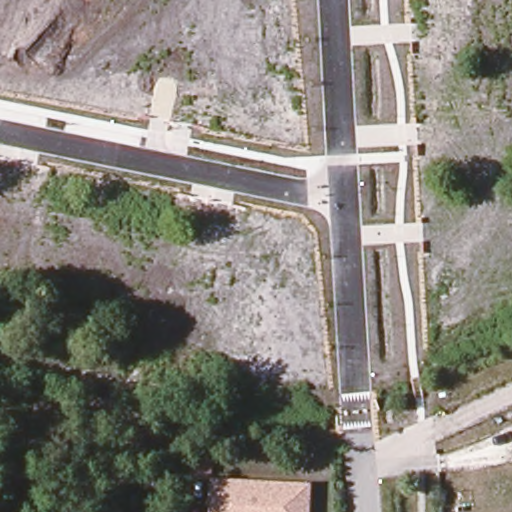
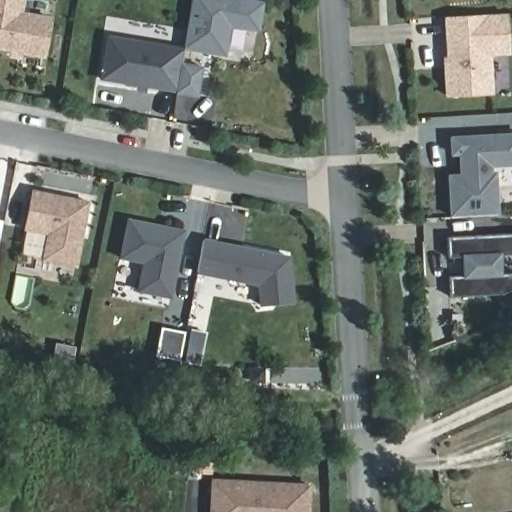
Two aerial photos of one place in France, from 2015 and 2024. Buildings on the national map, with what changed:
new [(23,12),(51,16),(45,57),(20,54),(20,59),(7,58),(8,51),(0,50),(0,0),(25,0),(23,12)]
new [(191,0),(256,0),(265,2),(260,33),(230,28),(226,55),(182,48),(191,0)]
new [(493,95),(444,97),(442,56),(446,56),(444,17),(507,13),(510,55),(491,57),(493,95)]
new [(99,81),(106,34),(182,48),(180,63),(202,65),(198,97),(175,93),(146,88),(146,92),(135,90),(135,85),(99,81)]
new [(499,213),(448,216),(447,174),(459,173),(458,155),(450,155),(449,135),(512,132),(512,165),(492,167),(492,172),(496,171),(499,213)]
new [(76,268),(40,260),(45,235),(21,230),(32,189),(90,201),(76,268)]
new [(137,291),(142,263),(119,258),(127,219),(185,230),(172,298),(137,291)]
new [(451,296),(450,277),(463,277),(462,256),(448,257),(447,238),(512,235),(512,253),(500,254),(501,274),(512,273),(512,289),(502,294),(451,296)]
new [(257,286),(196,273),(203,238),(292,256),(297,303),(259,306),(257,286)]
new [(166,327),(190,332),(183,360),(160,355),(166,327)]
unchanged [(209,512),(211,479),(314,484),(313,512),(209,512)]

